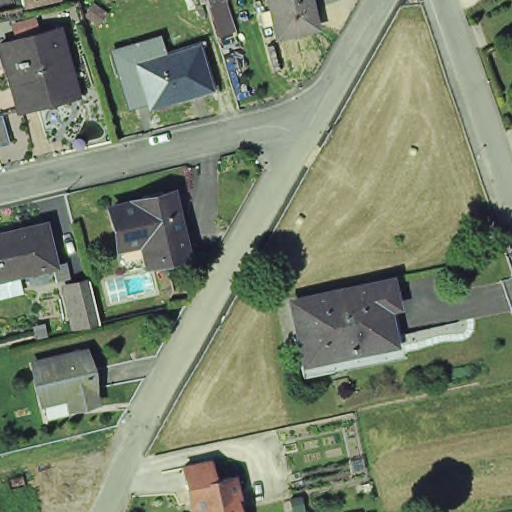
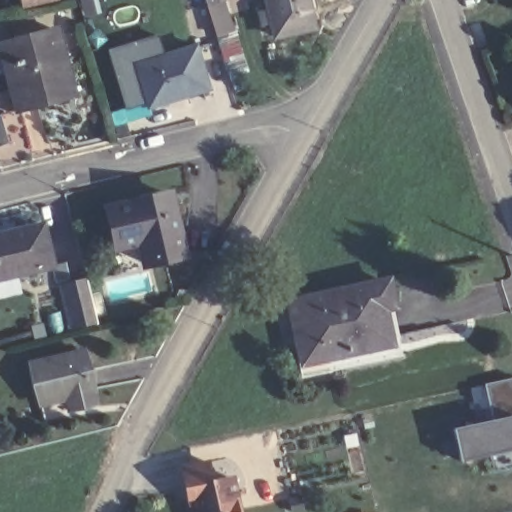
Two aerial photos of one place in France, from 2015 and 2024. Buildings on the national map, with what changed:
unchanged [(20,0),(57,0),(58,1),(36,6),(22,9),(20,0)]
unchanged [(206,2),(205,0),(215,0),(206,2)]
unchanged [(261,0),(299,0),(307,32),(271,41),(261,0)]
unchanged [(18,107),(10,74),(1,43),(12,39),(56,27),(64,60),(73,93),(62,96),(18,107)]
unchanged [(138,58),(193,41),(206,81),(150,99),(138,58)]
unchanged [(9,141),(0,143),(0,113),(2,113),(9,141)]
unchanged [(138,252),(132,231),(109,237),(100,199),(159,185),(173,244),(138,252)]
unchanged [(54,265),(0,278),(0,236),(44,225),(54,265)]
unchanged [(392,293),(384,297),(382,303),(389,332),(367,337),(355,279),(388,272),(392,293)]
unchanged [(292,293),(355,279),(367,337),(327,346),(305,350),(303,339),(292,293)]
unchanged [(95,322),(71,329),(61,285),(84,280),(95,322)]
unchanged [(42,349),(93,338),(104,386),(80,391),(78,382),(51,388),(42,349)]
new [(512,423),(512,452),(459,462),(454,431),(494,423),(487,385),(512,380),(512,420),(512,423)]
unchanged [(184,493),(179,473),(205,466),(210,485),(230,481),(237,512),(195,512),(191,491),(184,493)]
unchanged [(359,512),(357,512),(359,511),(359,512)]

